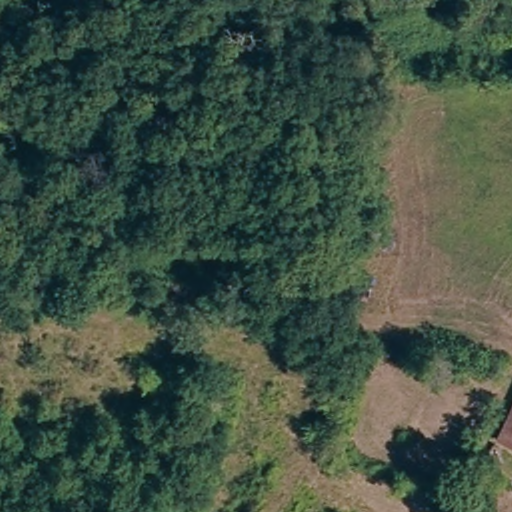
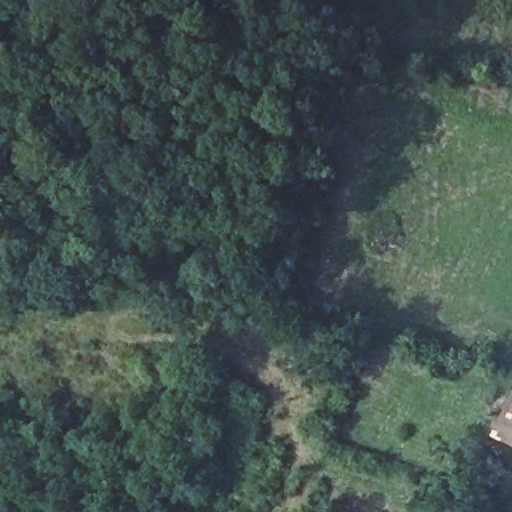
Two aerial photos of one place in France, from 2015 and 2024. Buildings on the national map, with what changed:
unchanged [(512,421),(512,443),(503,438),(512,421)]

